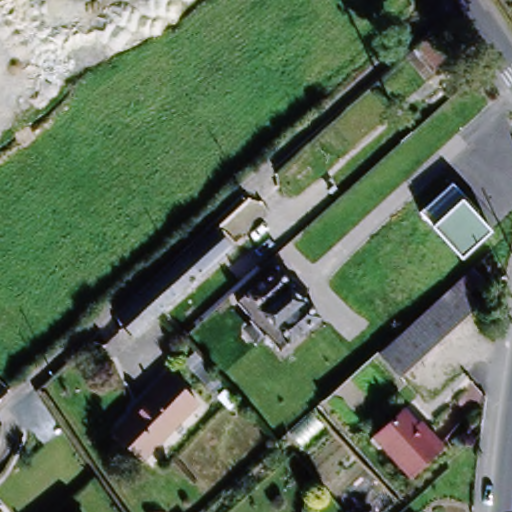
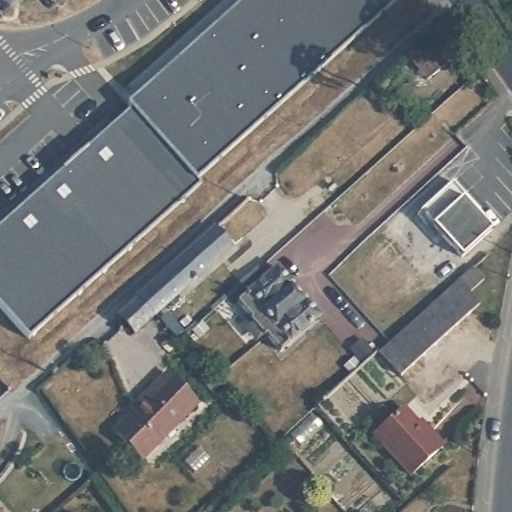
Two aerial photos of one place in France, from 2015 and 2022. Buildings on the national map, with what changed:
new [(196,181),(199,185),(29,339),(0,307),(0,229),(131,109),(127,103),(243,0),(399,0),(196,181)]
unchanged [(479,213),(477,216),(490,231),(459,258),(418,212),(450,182),(479,213)]
unchanged [(135,300),(187,252),(210,231),(225,248),(202,268),(151,315),(149,316),(130,334),(115,318),(135,300)]
unchanged [(242,320),(245,318),(231,302),(271,268),(286,285),(284,287),(296,301),(298,299),(314,316),(275,351),(260,334),(257,337),(242,320)]
unchanged [(379,354),(469,274),(490,295),(400,376),(379,354)]
unchanged [(137,460),(110,433),(135,405),(133,403),(161,372),(192,401),(137,460)]
unchanged [(408,476),(371,437),(401,410),(415,425),(418,421),(426,431),(440,447),(408,476)]

